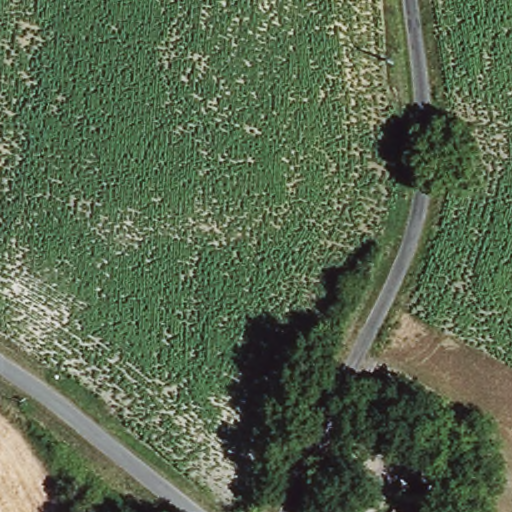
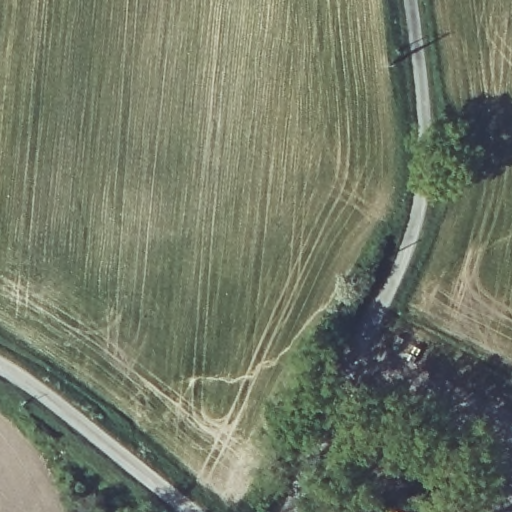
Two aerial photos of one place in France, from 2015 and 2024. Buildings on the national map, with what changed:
unchanged [(389,512),(385,512),(386,510),(389,512)]

